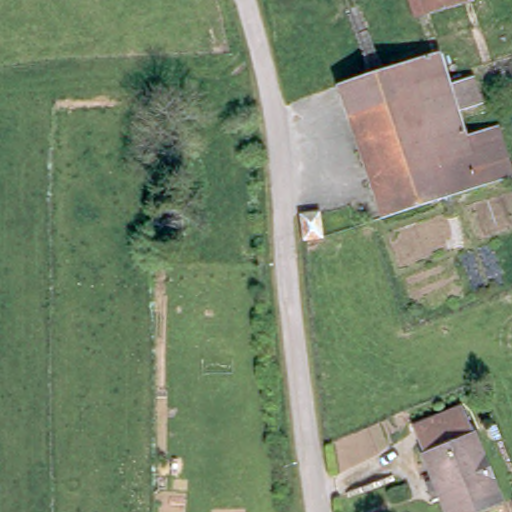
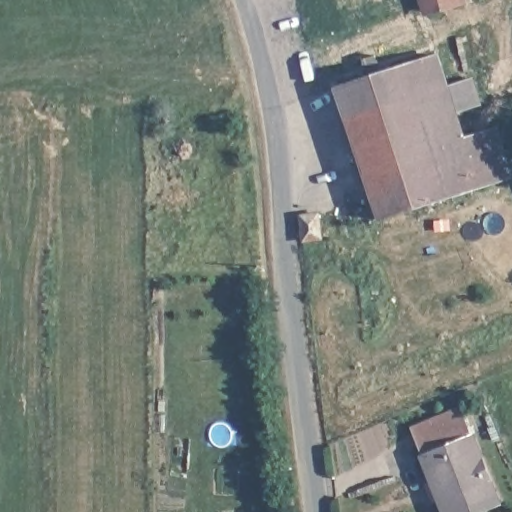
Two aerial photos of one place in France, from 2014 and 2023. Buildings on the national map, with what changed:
unchanged [(418,0),(437,0),(439,6),(423,12),(418,0)]
unchanged [(437,0),(455,0),(439,6),(437,0)]
unchanged [(387,223),(354,123),(396,109),(386,79),(436,64),(449,95),(474,89),(479,112),(457,120),(463,142),(494,135),(508,175),(512,174),(512,186),(387,223)]
unchanged [(344,92),(386,79),(396,109),(354,123),(344,92)]
unchanged [(299,231),(315,229),(318,250),(303,255),(299,231)]
unchanged [(442,500),(431,504),(422,482),(432,478),(412,428),(463,408),(502,500),(471,512),(447,512),(442,500)]

